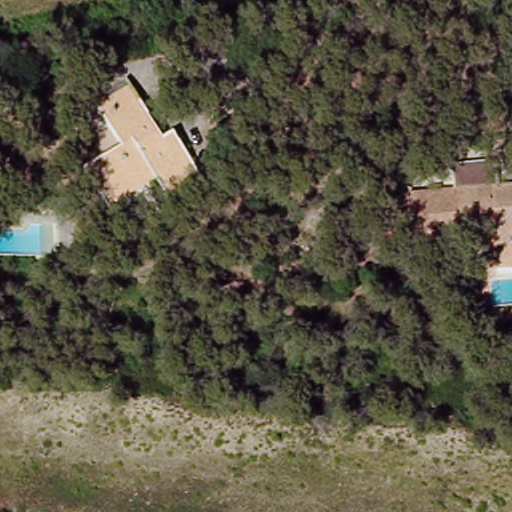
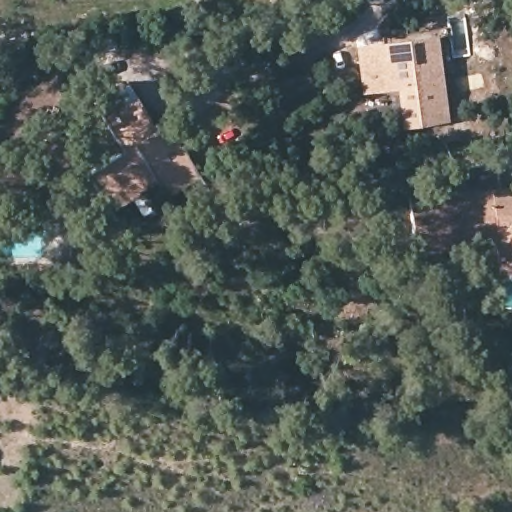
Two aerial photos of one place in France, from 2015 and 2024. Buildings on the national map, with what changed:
new [(397,79),(363,83),(357,42),(421,34),(433,33),(438,72),(443,113),(402,118),(397,79)]
unchanged [(103,193),(84,168),(117,145),(85,100),(100,93),(103,98),(127,83),(147,110),(161,128),(167,125),(195,160),(162,183),(153,175),(112,206),(103,193)]
unchanged [(512,276),(508,267),(499,236),(418,253),(405,204),(447,194),(442,170),(483,159),(492,186),(512,181),(512,276)]
unchanged [(323,232),(322,220),(352,213),(356,225),(323,232)]

